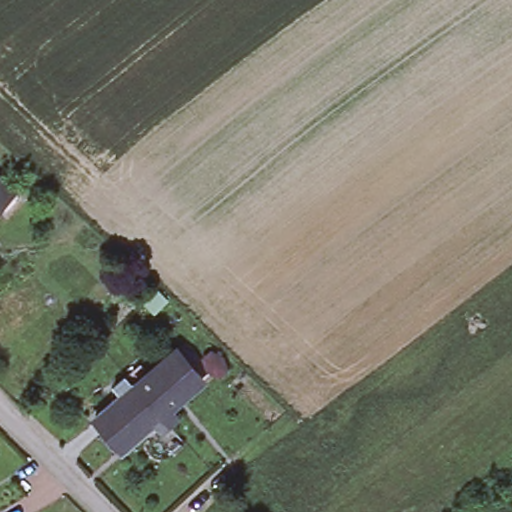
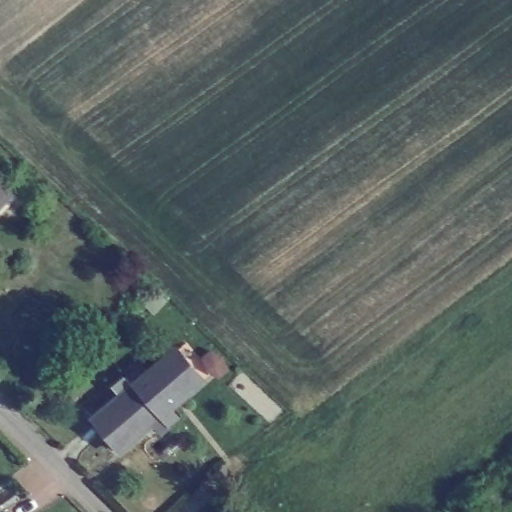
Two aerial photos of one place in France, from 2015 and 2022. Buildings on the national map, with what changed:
unchanged [(9,189),(13,192),(0,206),(0,179),(9,189)]
unchanged [(174,350),(199,381),(160,415),(134,384),(174,350)]
unchanged [(160,415),(120,448),(93,418),(134,384),(160,415)]

